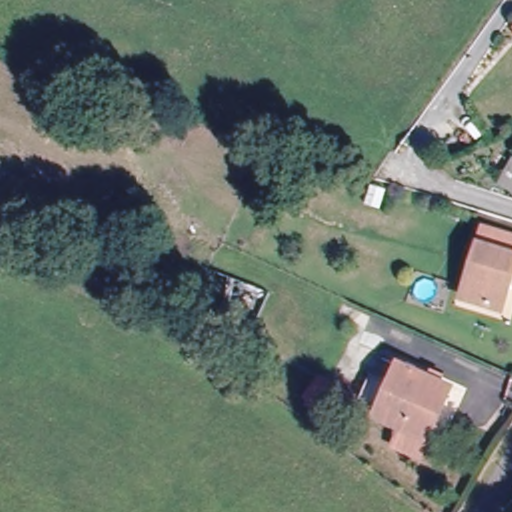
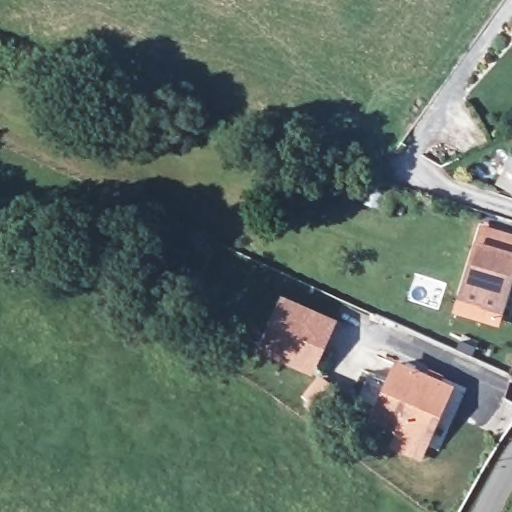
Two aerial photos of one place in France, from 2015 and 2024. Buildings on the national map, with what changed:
new [(512,160),(512,193),(496,181),(512,160)]
unchanged [(456,299),(487,235),(512,245),(512,284),(495,318),(456,299)]
new [(339,317),(314,374),(256,349),(281,293),(339,317)]
unchanged [(400,454),(409,430),(384,421),(388,410),(367,402),(377,376),(398,384),(405,365),(453,383),(423,463),(400,454)]
demolished [(312,425),(315,421),(308,417),(320,399),(349,418),(334,440),(312,425)]

